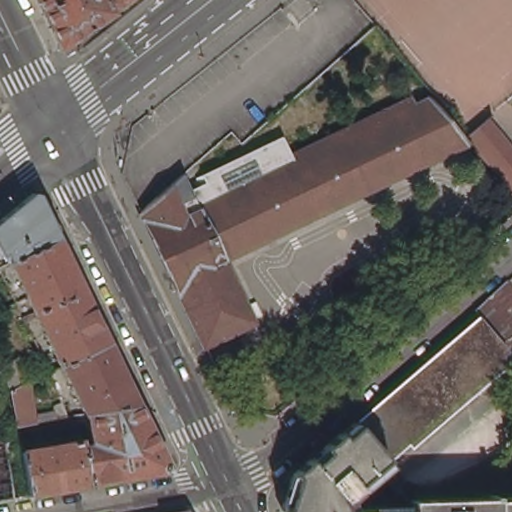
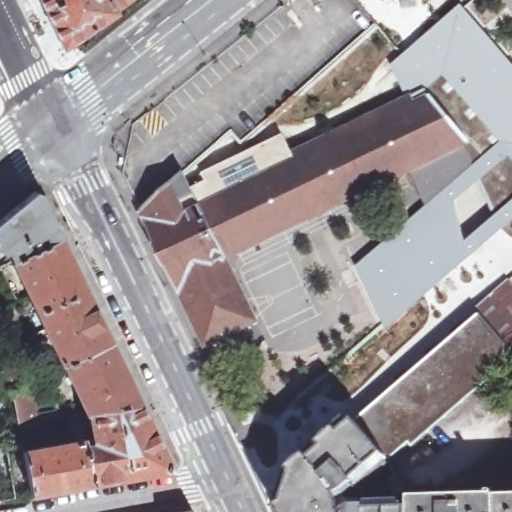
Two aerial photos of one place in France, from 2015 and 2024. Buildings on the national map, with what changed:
unchanged [(115,1),(122,15),(120,16),(94,34),(91,36),(69,51),(65,41),(53,17),(52,17),(48,9),(44,2),(45,2),(44,0),(114,0),(115,1)]
unchanged [(115,1),(114,0),(142,0),(135,5),(131,9),(131,8),(126,12),(123,14),(122,15),(115,1)]
new [(512,65),(512,221),(388,328),(356,267),(427,207),(411,176),(476,145),(437,100),(421,106),(418,103),(409,107),(392,65),(461,5),(512,65)]
unchanged [(211,347),(208,341),(175,273),(167,257),(147,215),(160,203),(192,176),(199,191),(213,185),(210,177),(291,139),(300,158),(418,103),(421,106),(437,100),(476,145),(233,262),(262,325),(212,349),(211,347)]
demolished [(473,140),(474,140),(494,123),(512,145),(512,186),(486,155),(473,140)]
unchanged [(64,236),(53,241),(23,257),(18,247),(10,251),(0,231),(0,225),(41,192),(46,193),(63,230),(64,230),(66,235),(64,236)]
unchanged [(130,405),(117,408),(95,412),(94,412),(20,259),(23,257),(53,241),(64,236),(66,235),(67,235),(67,236),(66,236),(79,262),(80,262),(82,268),(102,312),(103,312),(106,317),(106,318),(129,367),(130,367),(132,372),(132,373),(145,401),(146,402),(130,405)]
unchanged [(506,365),(506,364),(507,347),(507,343),(505,339),(490,322),(487,319),(487,318),(482,313),(480,312),(477,308),(479,306),(486,300),(488,298),(499,288),(509,280),(510,278),(512,281),(512,366),(506,365)]
unchanged [(505,365),(415,442),(412,439),(391,458),(389,456),(384,451),(380,447),(379,446),(377,444),(366,431),(358,422),(359,421),(373,409),(379,404),(380,403),(383,401),(396,389),(399,387),(399,386),(400,385),(400,386),(410,377),(410,376),(430,360),(431,359),(440,351),(441,350),(444,348),(458,336),(461,334),(462,333),(481,316),(482,315),(481,314),(482,313),(487,318),(487,319),(490,322),(505,339),(507,343),(507,347),(506,364),(506,365),(505,365)]
unchanged [(19,425),(16,406),(12,388),(9,381),(5,372),(2,366),(21,357),(31,380),(38,412),(56,410),(55,402),(64,400),(71,415),(19,425)]
unchanged [(177,468),(177,469),(176,469),(160,472),(107,481),(98,483),(98,481),(97,474),(96,470),(95,466),(93,457),(91,447),(91,444),(100,442),(94,415),(94,412),(95,412),(117,408),(130,405),(146,402),(147,404),(154,420),(156,424),(157,424),(161,431),(161,432),(160,432),(162,435),(177,467),(177,468)]
unchanged [(287,500),(293,481),(292,481),(295,475),(298,472),(299,472),(310,463),(309,462),(328,445),(329,446),(340,437),(340,436),(344,432),(344,433),(354,425),(353,424),(357,421),(358,422),(366,431),(377,444),(379,446),(380,447),(384,451),(389,456),(391,458),(345,496),(352,512),(288,512),(288,510),(286,510),(284,506),(286,500),(287,500)]
unchanged [(6,499),(2,500),(0,501),(0,440),(6,439),(16,495),(16,498),(6,499)]
unchanged [(95,484),(85,485),(79,487),(76,487),(72,488),(71,488),(70,487),(65,488),(65,489),(61,490),(48,492),(38,494),(37,492),(37,491),(36,488),(35,478),(33,472),(30,455),(30,452),(29,450),(41,448),(81,442),(90,440),(91,444),(91,447),(93,457),(95,466),(96,470),(97,474),(98,481),(98,483),(95,484)]
unchanged [(407,489),(397,493),(389,477),(398,472),(402,480),(407,489)]
unchanged [(438,497),(441,497),(502,495),(505,495),(512,495),(512,512),(414,512),(414,506),(414,497),(438,497)]
unchanged [(414,506),(414,512),(352,512),(362,507),(414,506)]
unchanged [(194,510),(195,512),(184,512),(193,510),(194,510)]

